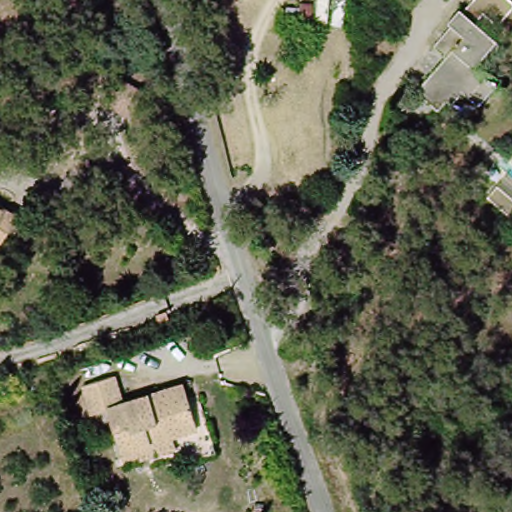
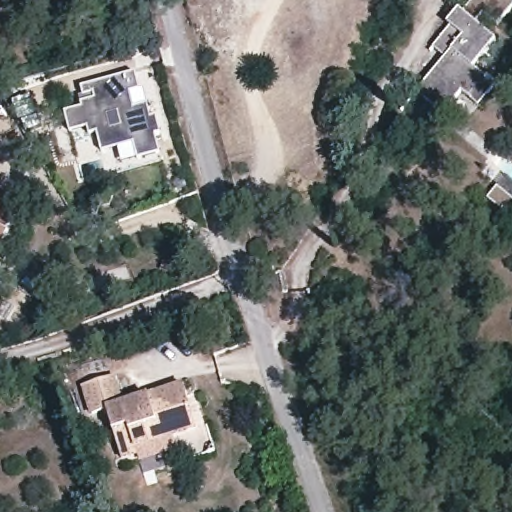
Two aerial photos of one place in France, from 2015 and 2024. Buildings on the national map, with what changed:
unchanged [(470,14),(481,0),(512,0),(512,18),(497,37),(470,14)]
unchanged [(502,84),(484,104),(467,91),(455,102),(448,98),(441,105),(420,87),(448,56),(437,45),(467,11),(470,14),(497,37),(501,41),(482,63),(502,84)]
new [(81,102),(85,101),(83,95),(81,87),(135,72),(140,89),(130,92),(135,107),(148,103),(152,117),(157,115),(162,133),(157,134),(162,152),(139,159),(135,143),(103,152),(97,132),(90,134),(88,127),(70,132),(65,112),(82,107),(81,102)]
unchanged [(502,181),(512,189),(512,210),(492,192),(502,181)]
unchanged [(20,208),(4,238),(0,235),(0,199),(5,202),(20,208)]
unchanged [(107,403),(91,408),(82,381),(113,371),(122,398),(180,379),(195,424),(173,433),(177,443),(138,455),(137,449),(123,454),(107,403)]

